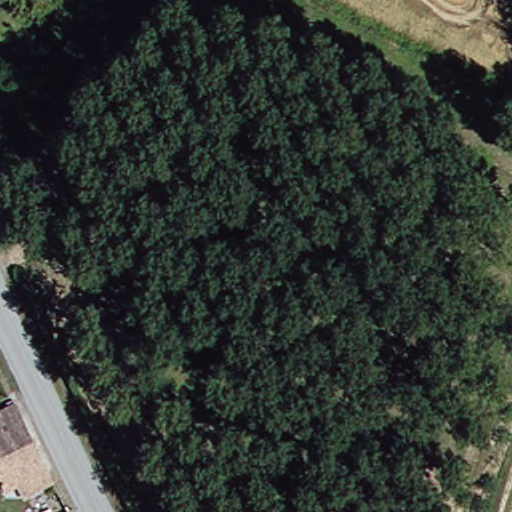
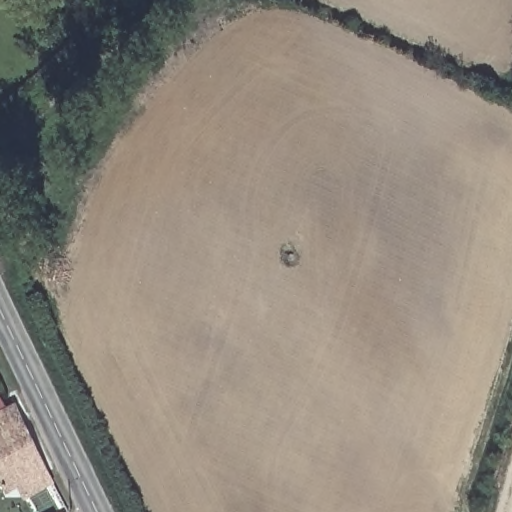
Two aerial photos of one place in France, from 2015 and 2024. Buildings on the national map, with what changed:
unchanged [(39,461),(0,483),(0,401),(8,397),(39,461)]
unchanged [(39,461),(50,484),(16,500),(13,491),(4,495),(0,483),(39,461)]

